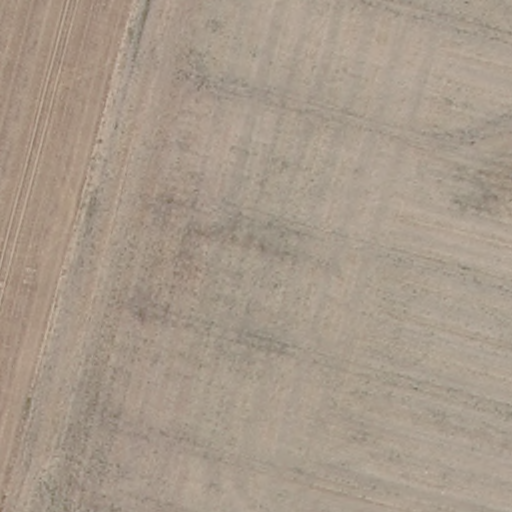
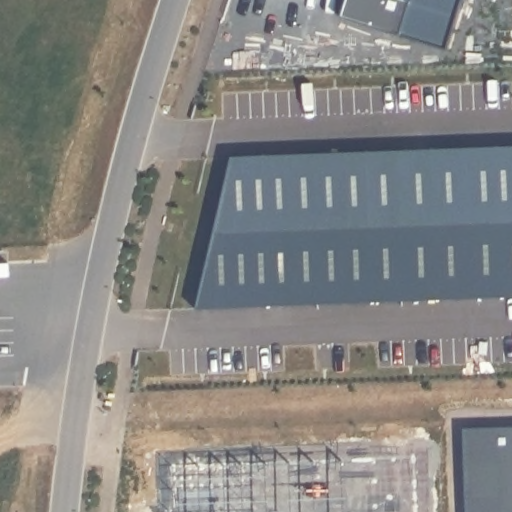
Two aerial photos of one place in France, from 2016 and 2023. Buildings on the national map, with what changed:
new [(344,21),(350,0),(468,0),(450,55),(344,21)]
new [(512,145),(512,298),(194,308),(230,155),(512,145)]

